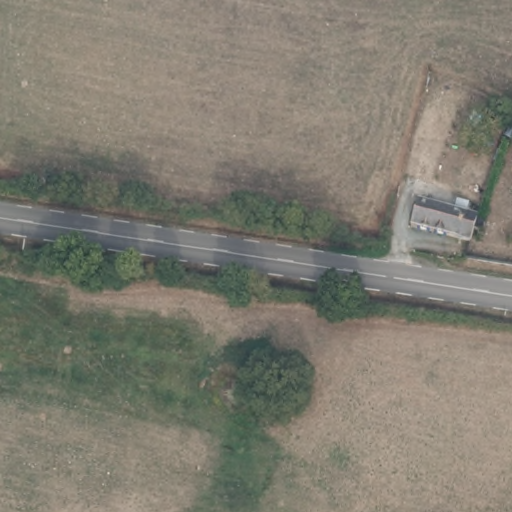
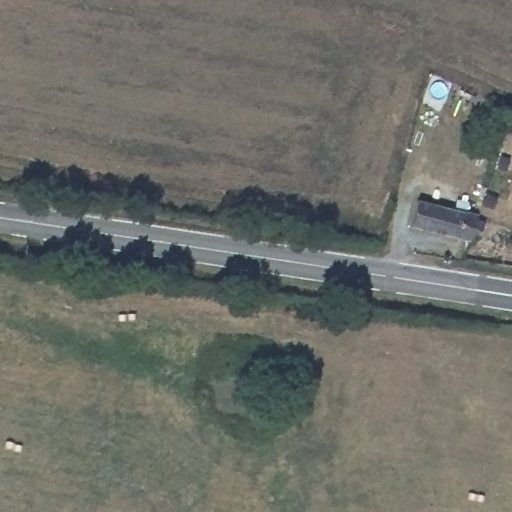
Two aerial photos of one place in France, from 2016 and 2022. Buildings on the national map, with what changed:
unchanged [(412,232),(418,203),(481,215),(472,244),(412,232)]

